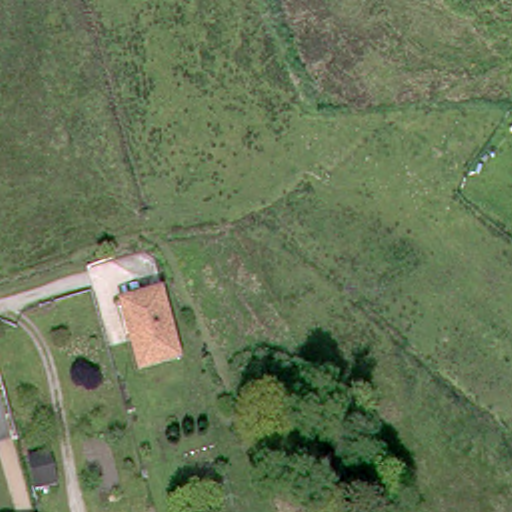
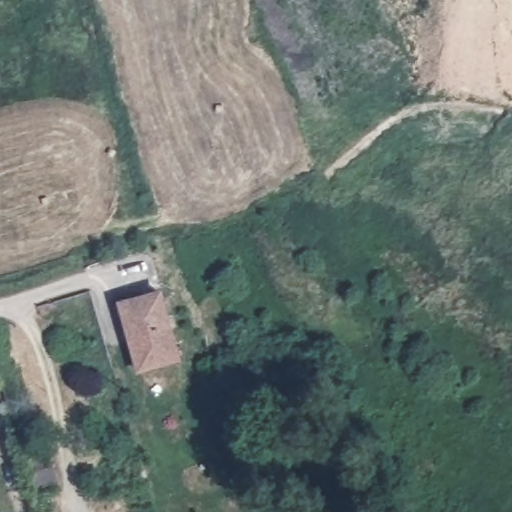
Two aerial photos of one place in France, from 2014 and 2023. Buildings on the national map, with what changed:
unchanged [(174,353),(135,364),(121,316),(116,298),(121,296),(157,287),(174,353)]

